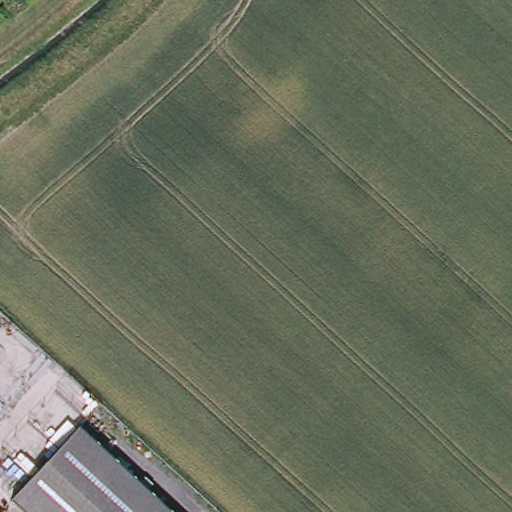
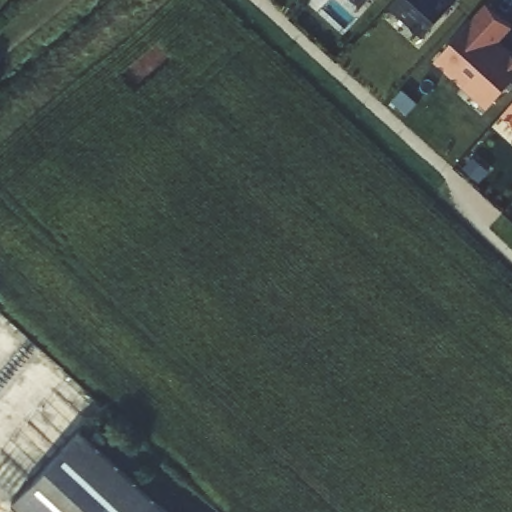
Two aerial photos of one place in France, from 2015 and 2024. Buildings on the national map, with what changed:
new [(364,4),(360,0),(368,0),(364,4)]
new [(395,0),(451,0),(454,2),(425,34),(392,4),(395,0)]
new [(512,24),(512,26),(500,40),(512,51),(512,82),(495,101),(470,78),(464,84),(437,59),(489,2),(512,24)]
new [(504,113),(512,104),(512,121),(504,113)]
unchanged [(21,512),(11,502),(79,429),(168,512),(21,512)]

